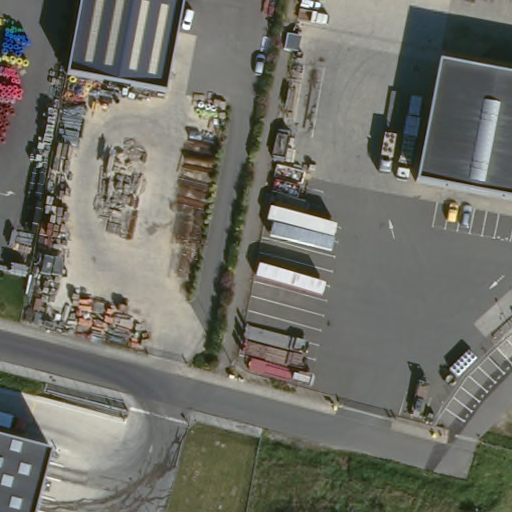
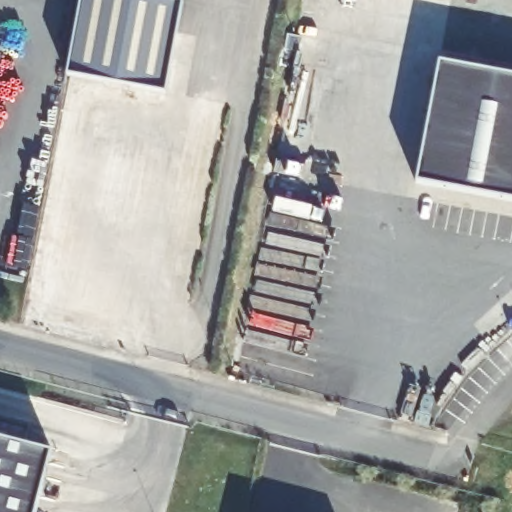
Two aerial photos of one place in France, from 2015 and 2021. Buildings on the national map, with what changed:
unchanged [(80,0),(145,0),(180,7),(166,90),(64,75),(80,0)]
unchanged [(440,64),(512,77),(512,199),(419,180),(440,64)]
unchanged [(35,512),(0,512),(0,439),(50,452),(35,512)]

